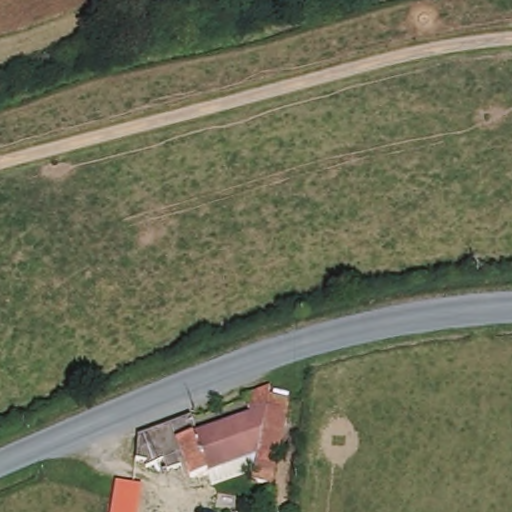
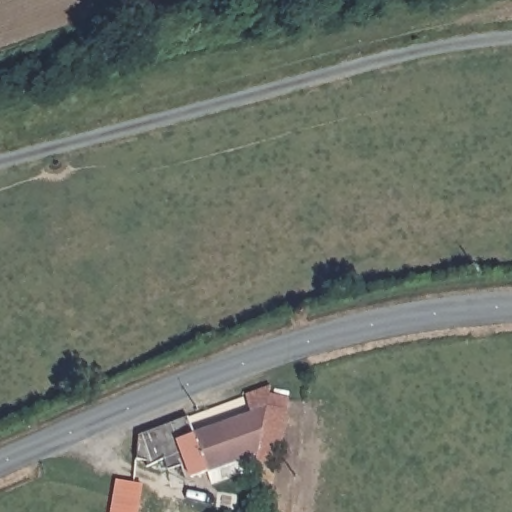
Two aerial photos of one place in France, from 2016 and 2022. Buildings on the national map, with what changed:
unchanged [(131,505),(132,503),(141,455),(141,452),(141,451),(142,442),(143,440),(191,420),(198,438),(254,417),(248,400),(274,389),(272,401),(271,402),(259,466),(258,475),(215,487),(209,477),(194,482),(184,457),(150,470),(144,496),(142,509),(131,506),(131,505)]
unchanged [(273,490),(255,488),(258,475),(259,466),(271,402),(272,401),(288,403),(273,490)]
unchanged [(131,505),(131,506),(138,508),(138,512),(111,512),(116,481),(135,483),(132,503),(131,505)]

